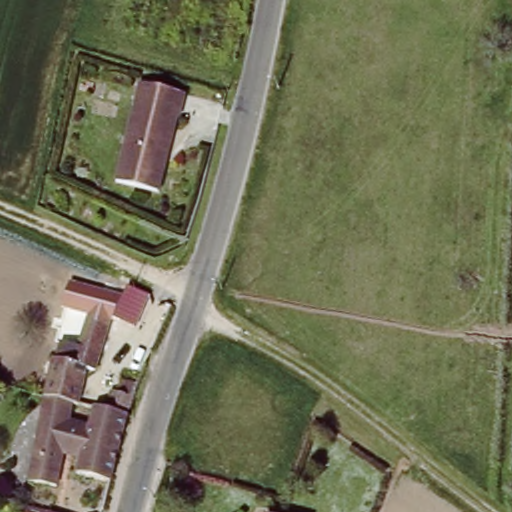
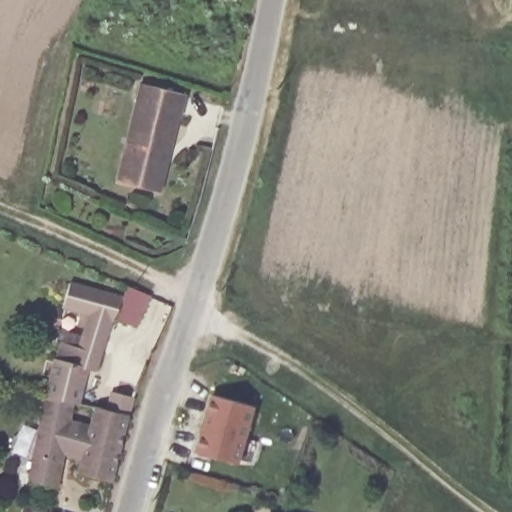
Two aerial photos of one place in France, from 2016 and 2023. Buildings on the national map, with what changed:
unchanged [(190,93),(183,116),(180,117),(161,190),(120,179),(145,81),(190,93)]
unchanged [(155,298),(152,305),(149,305),(136,330),(114,320),(129,285),(155,298)]
unchanged [(55,349),(74,355),(87,316),(110,324),(94,373),(87,371),(79,405),(75,405),(43,400),(55,349)]
unchanged [(57,487),(27,481),(43,400),(75,405),(70,422),(89,427),(94,409),(104,411),(115,382),(126,386),(125,390),(135,393),(130,403),(132,405),(129,418),(111,484),(75,475),(79,460),(74,458),(64,455),(57,487)]
new [(212,400),(254,410),(240,462),(199,451),(212,400)]
unchanged [(24,502),(47,510),(55,512),(21,512),(24,502)]

